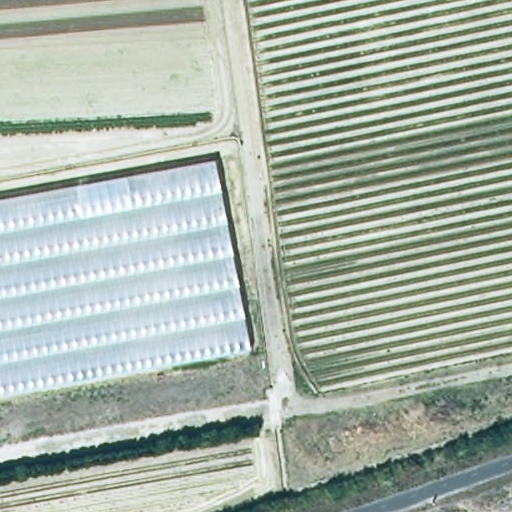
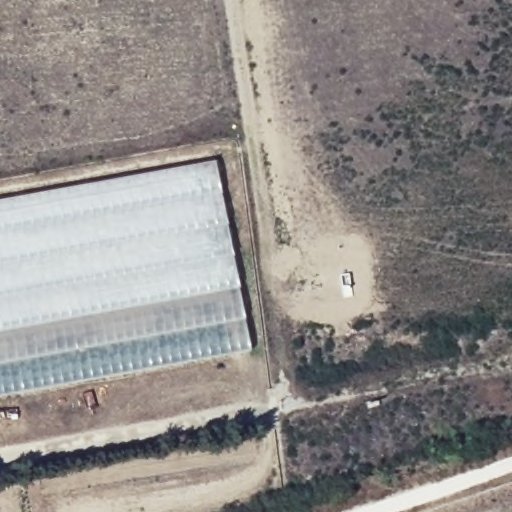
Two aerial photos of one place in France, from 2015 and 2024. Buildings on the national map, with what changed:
unchanged [(213,158),(248,351),(0,398),(0,199),(213,158)]

